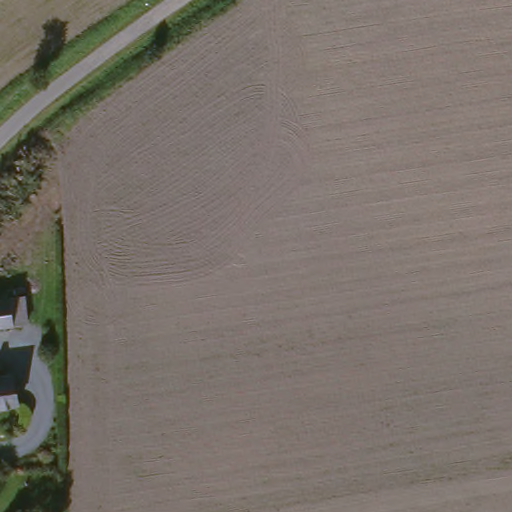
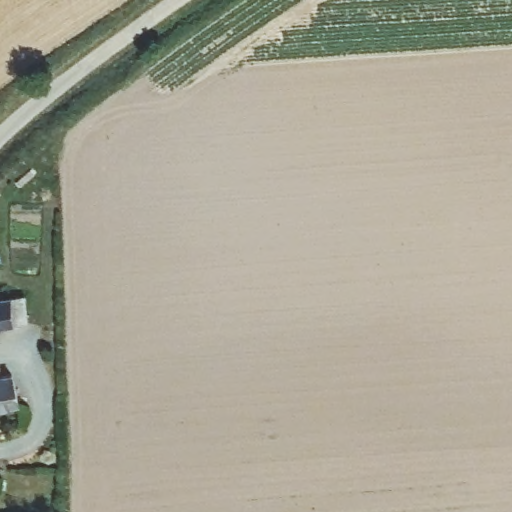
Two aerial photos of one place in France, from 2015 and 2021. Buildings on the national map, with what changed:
unchanged [(0,323),(0,297),(15,294),(19,320),(0,323)]
unchanged [(7,405),(0,407),(0,378),(2,377),(7,405)]

